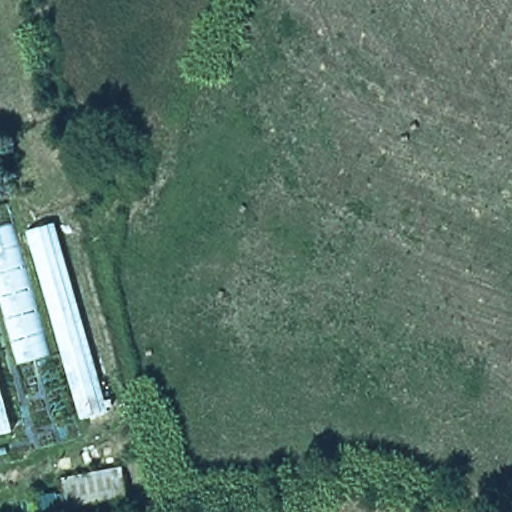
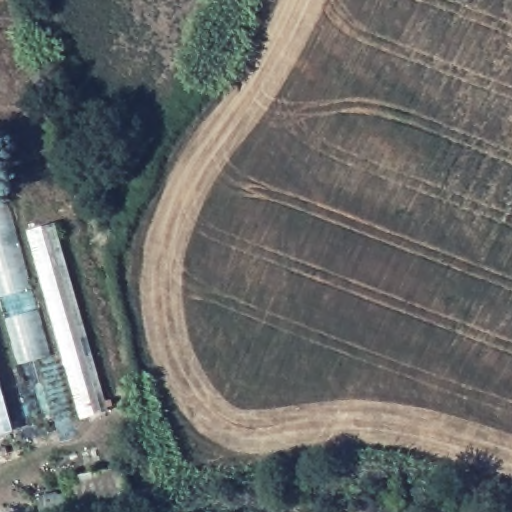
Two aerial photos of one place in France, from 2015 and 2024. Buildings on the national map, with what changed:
unchanged [(19,230),(52,220),(104,411),(0,437),(0,206),(9,204),(19,230)]

